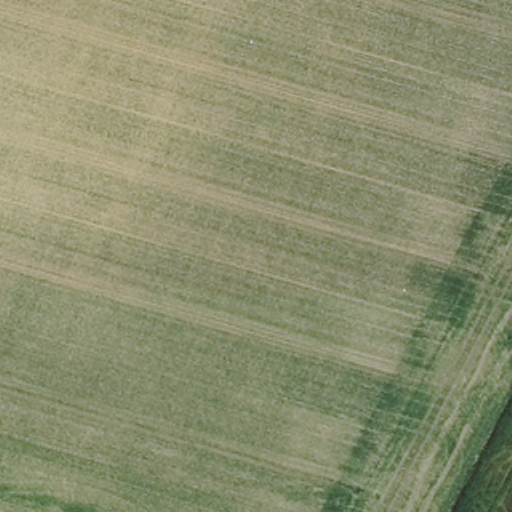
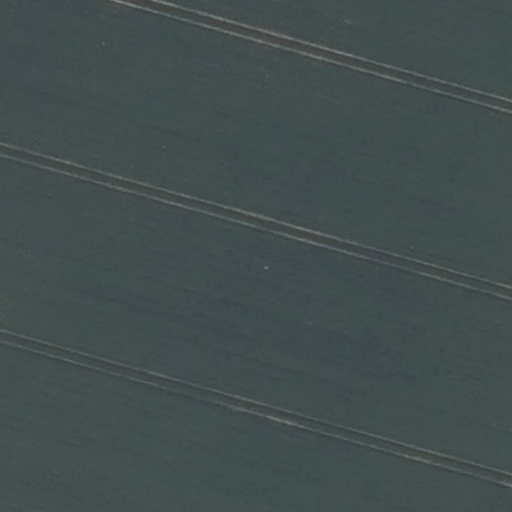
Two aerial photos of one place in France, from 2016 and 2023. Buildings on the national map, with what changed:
[]

